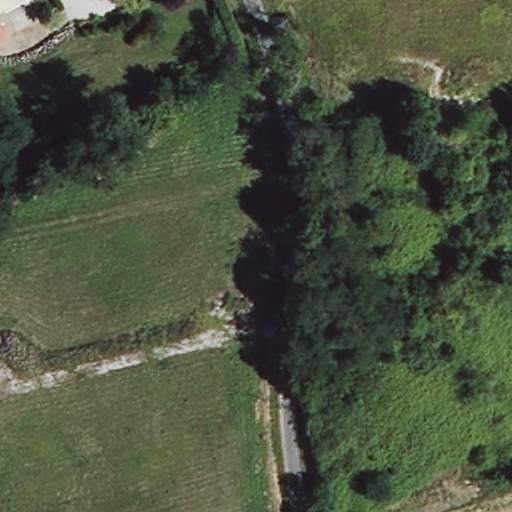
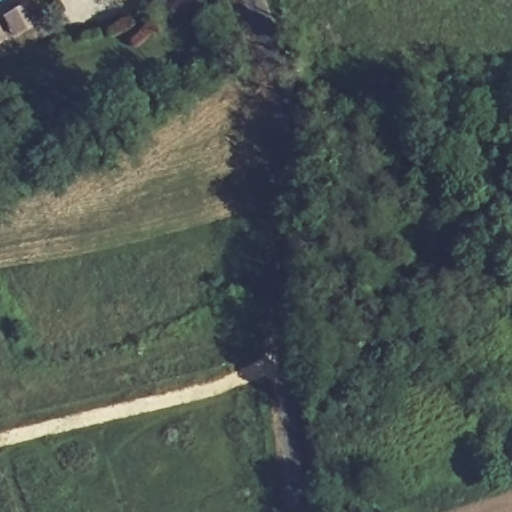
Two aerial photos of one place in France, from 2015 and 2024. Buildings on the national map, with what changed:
[]

